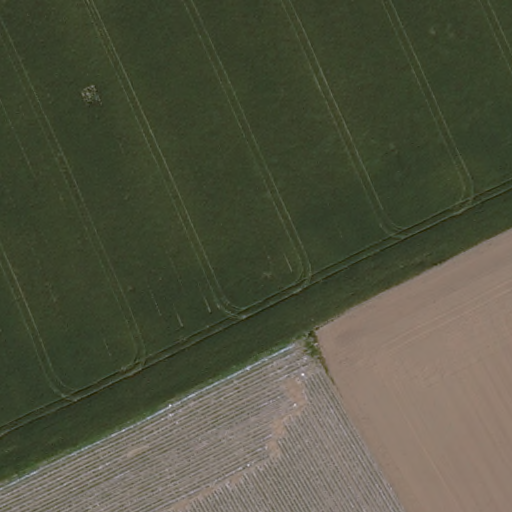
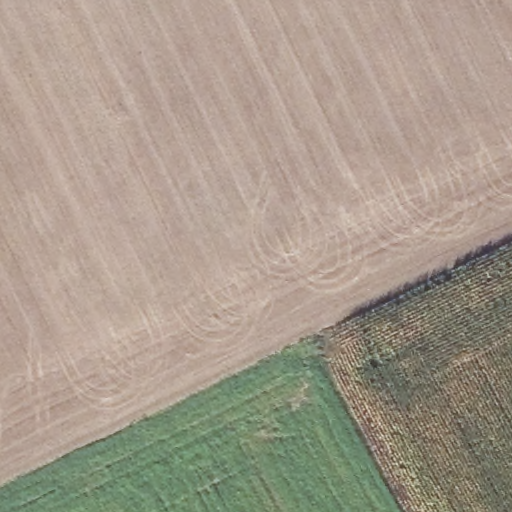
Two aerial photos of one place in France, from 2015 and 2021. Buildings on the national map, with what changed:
[]

